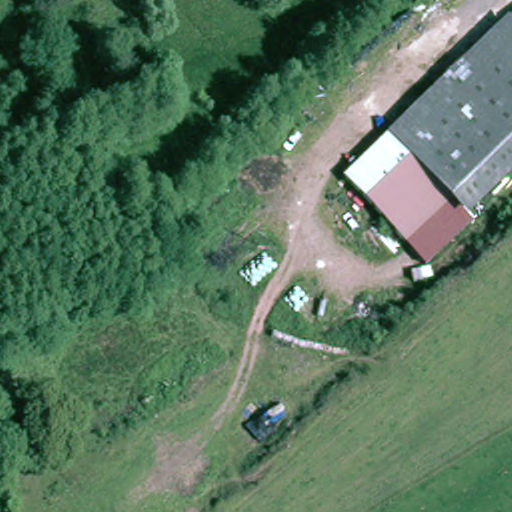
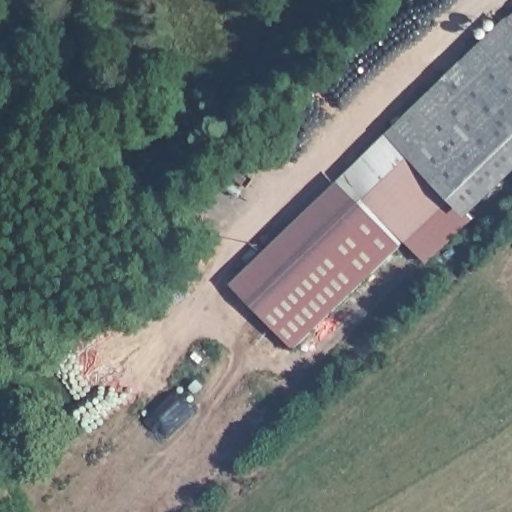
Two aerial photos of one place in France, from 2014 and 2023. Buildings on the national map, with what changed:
unchanged [(458,197),(414,150),(391,126),(512,13),(512,160),(466,204),(458,197)]
new [(344,175),(391,126),(414,150),(364,197),(344,175)]
unchanged [(414,150),(458,197),(411,243),(364,197),(414,150)]
new [(293,348),(231,283),(344,175),(364,197),(403,235),(407,239),(293,348)]
new [(474,216),(427,263),(411,243),(458,197),(466,204),(474,216)]

